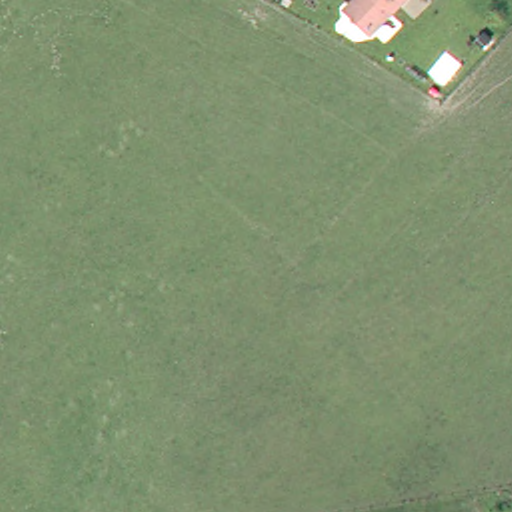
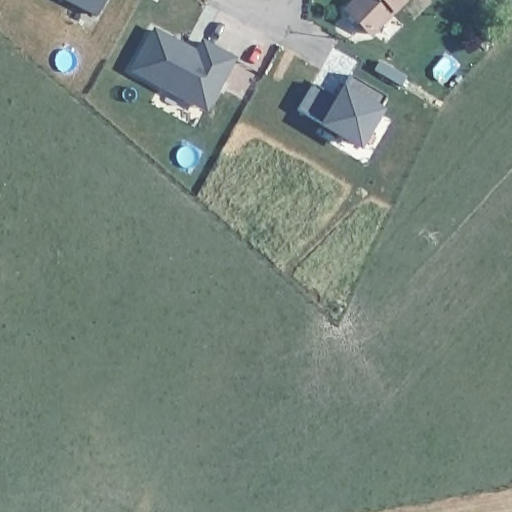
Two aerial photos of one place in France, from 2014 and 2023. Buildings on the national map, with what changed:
new [(67,0),(102,0),(95,14),(67,0)]
unchanged [(339,7),(346,0),(403,0),(368,35),(339,7)]
new [(195,49),(200,38),(235,58),(206,114),(128,71),(152,26),(195,49)]
new [(357,149),(316,125),(318,121),(299,109),(313,84),(332,97),(340,84),(343,86),(350,75),(385,96),(379,107),(380,108),(357,149)]

